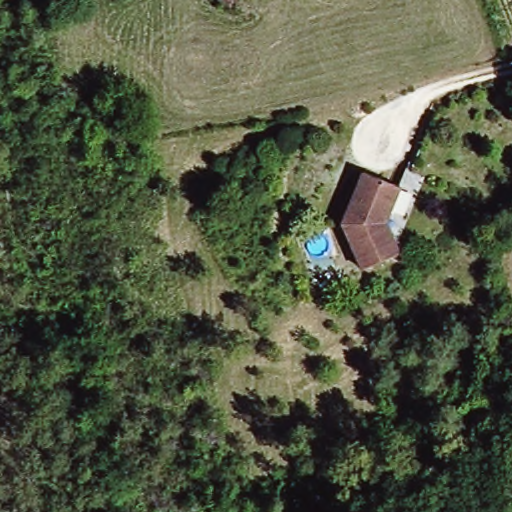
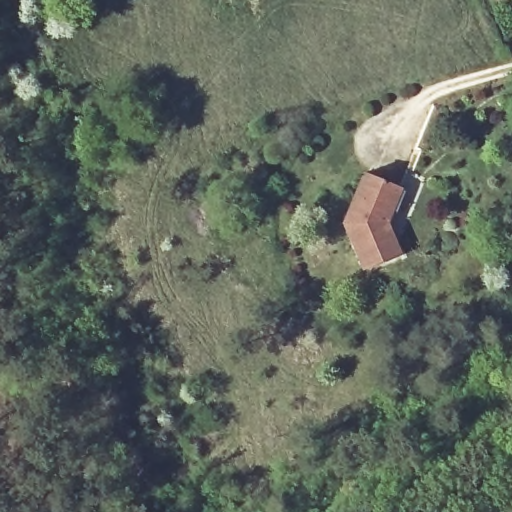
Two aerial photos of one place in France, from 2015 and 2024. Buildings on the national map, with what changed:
unchanged [(364,271),(344,223),(366,171),(402,187),(387,225),(400,257),(364,271)]

